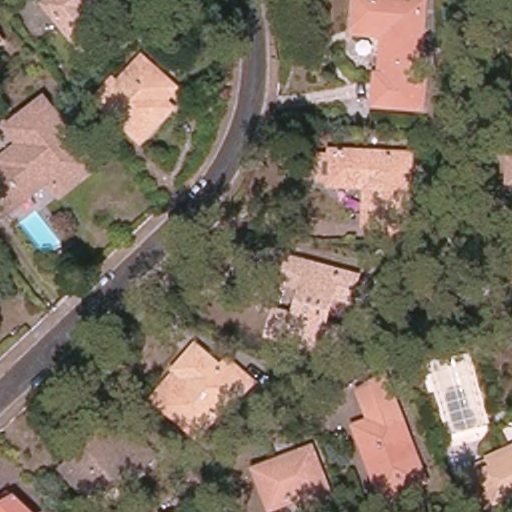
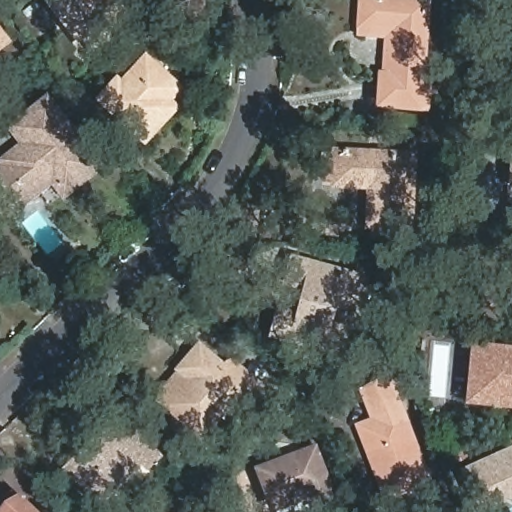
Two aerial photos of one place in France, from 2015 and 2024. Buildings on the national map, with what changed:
unchanged [(112,29),(104,35),(82,51),(49,9),(60,0),(116,0),(100,13),(112,29)]
unchanged [(376,1),(376,0),(383,0),(383,1),(428,6),(421,84),(427,84),(426,110),(382,106),(384,81),(388,36),(361,35),(362,26),(364,1),(376,1)]
unchanged [(0,41),(0,33),(4,38),(0,41)]
unchanged [(152,115),(138,131),(108,104),(124,87),(129,91),(154,65),(170,80),(158,93),(166,100),(152,115)]
unchanged [(49,182),(5,214),(0,207),(0,177),(7,172),(1,165),(23,149),(9,130),(43,104),(95,173),(74,188),(61,198),(53,188),(49,182)]
unchanged [(413,222),(375,221),(375,182),(340,180),(328,180),(329,151),(341,151),(416,154),(413,222)]
unchanged [(511,184),(512,162),(512,184),(511,184)]
unchanged [(435,242),(435,254),(424,254),(424,241),(435,242)]
unchanged [(348,294),(331,289),(320,320),(337,326),(331,344),(269,324),(275,305),(294,311),(304,281),(285,274),(292,253),(354,275),(348,294)]
new [(466,407),(470,343),(512,347),(512,410),(466,407)]
unchanged [(215,416),(197,435),(166,407),(156,398),(179,372),(198,351),(221,372),(229,364),(253,386),(238,401),(221,420),(215,416)]
unchanged [(380,417),(373,402),(370,403),(363,386),(387,373),(430,473),(392,489),(374,446),(364,423),(380,417)]
unchanged [(107,433),(122,448),(135,437),(155,457),(141,469),(136,464),(121,477),(123,480),(96,504),(64,470),(107,433)]
unchanged [(310,449),(329,495),(312,502),(307,491),(273,505),(259,469),(310,449)]
unchanged [(512,454),(512,495),(503,500),(483,509),(468,476),(498,461),(512,454)]
unchanged [(1,512),(16,496),(30,512),(2,512),(1,512)]

